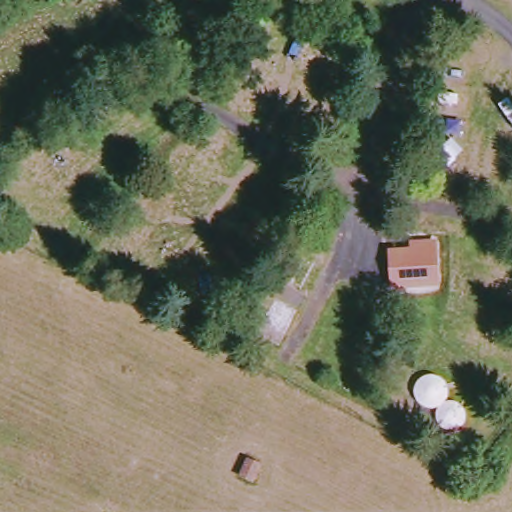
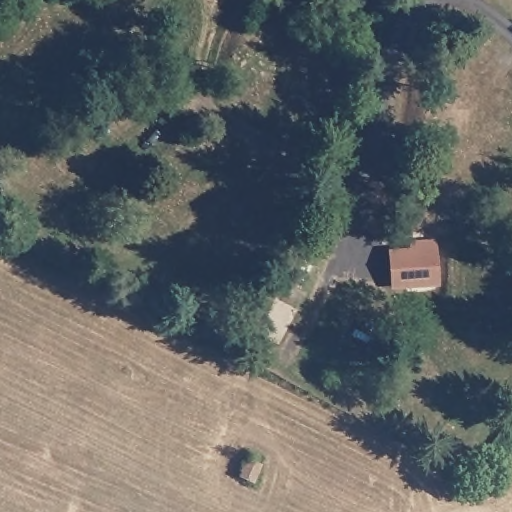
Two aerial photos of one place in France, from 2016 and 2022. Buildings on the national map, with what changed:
unchanged [(445,285),(399,289),(396,255),(415,253),(415,241),(439,239),(445,285)]
unchanged [(256,319),(269,294),(281,300),(291,281),(307,290),(284,333),(256,319)]

